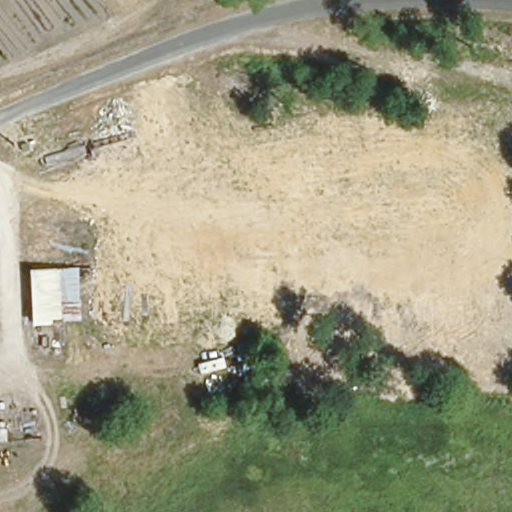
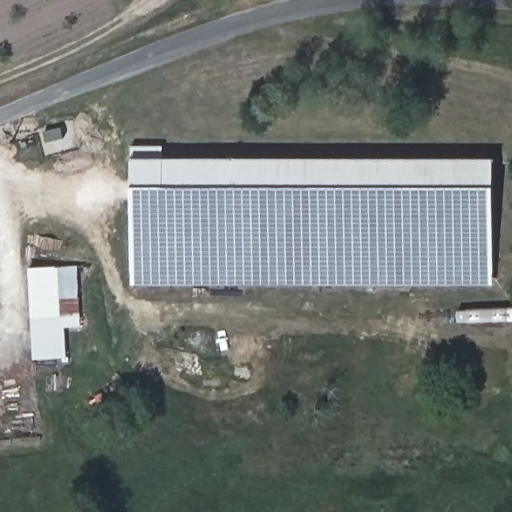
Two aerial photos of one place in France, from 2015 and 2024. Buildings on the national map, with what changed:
new [(132,285),(130,161),(131,146),(163,146),(164,159),(494,160),(493,284),(132,285)]
demolished [(93,294),(60,296),(64,323),(30,326),(27,265),(93,262),(93,294)]
new [(64,327),(66,357),(34,360),(29,267),(77,265),(80,326),(64,327)]

